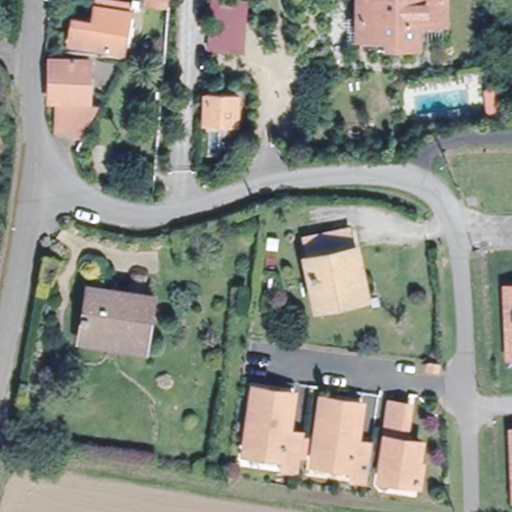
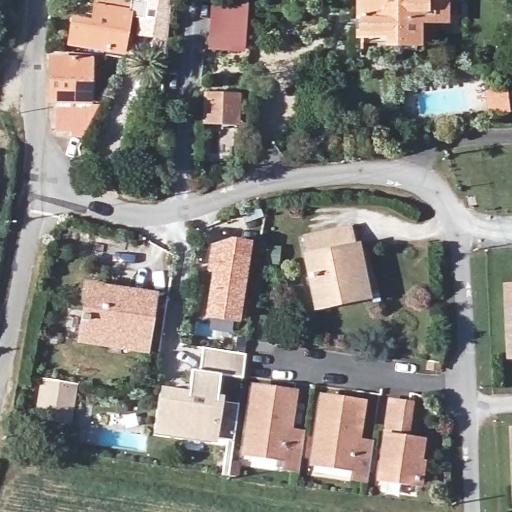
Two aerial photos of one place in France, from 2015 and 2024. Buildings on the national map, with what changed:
unchanged [(137,7),(141,0),(163,0),(163,9),(142,7),(137,7)]
unchanged [(247,0),(244,52),(208,50),(210,0),(247,0)]
unchanged [(354,0),(437,0),(437,20),(410,20),(410,44),(387,44),(387,51),(354,51),(354,37),(354,0)]
unchanged [(64,50),(68,26),(87,29),(92,2),(125,8),(117,58),(64,50)]
unchanged [(134,6),(133,12),(127,11),(128,5),(134,6)]
unchanged [(51,60),(90,61),(88,102),(49,100),(51,60)]
unchanged [(240,94),(239,127),(201,126),(202,92),(240,94)]
unchanged [(71,137),(71,132),(55,131),(56,104),(99,106),(82,137),(71,137)]
unchanged [(316,306),(306,257),(302,239),(351,229),(355,247),(365,296),(316,306)]
new [(217,256),(244,260),(237,314),(236,319),(208,315),(209,310),(217,256)]
unchanged [(501,283),(512,283),(512,361),(505,361),(501,283)]
unchanged [(81,339),(83,329),(89,287),(152,296),(145,338),(144,348),(81,339)]
new [(182,397),(188,397),(192,371),(200,372),(203,347),(246,355),(243,378),(221,375),(217,400),(239,403),(234,442),(176,433),(160,431),(165,394),(182,397)]
unchanged [(439,369),(429,367),(430,360),(440,361),(439,369)]
new [(71,422),(33,417),(39,379),(77,385),(71,422)]
unchanged [(300,465),(283,462),(284,452),(245,447),(253,382),(294,388),(288,427),(305,430),(300,465)]
unchanged [(351,477),(353,467),(314,462),(323,397),(363,403),(357,442),(373,445),(368,479),(351,477)]
unchanged [(392,402),(410,405),(405,440),(421,442),(418,463),(422,463),(420,482),(381,477),(392,402)]
unchanged [(507,428),(512,428),(512,504),(511,504),(507,428)]

